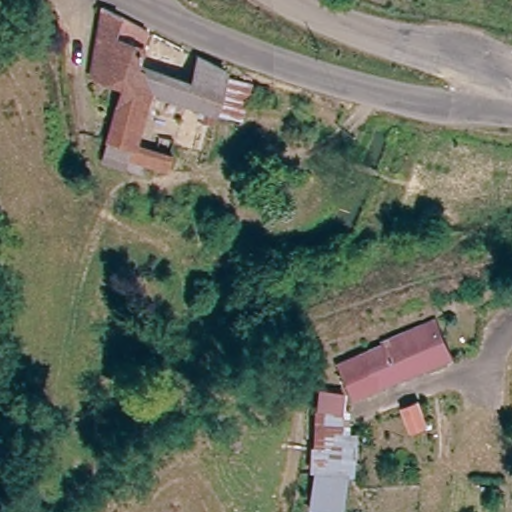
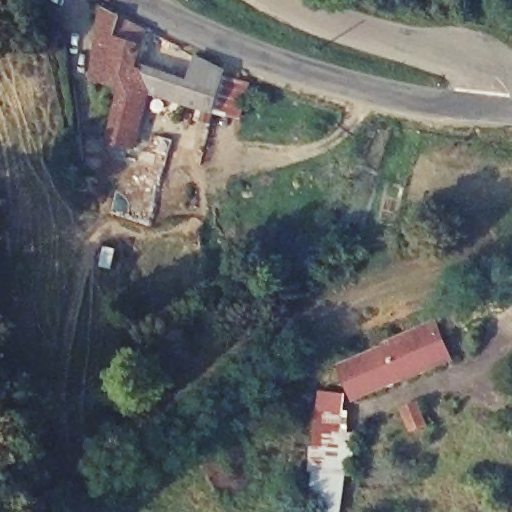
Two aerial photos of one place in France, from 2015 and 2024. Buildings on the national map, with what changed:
unchanged [(134,140),(116,134),(127,84),(98,72),(100,10),(118,17),(141,26),(139,42),(136,63),(193,83),(202,53),(232,65),(218,110),(150,87),(134,140)]
unchanged [(134,140),(173,153),(170,168),(130,155),(134,140)]
unchanged [(439,321),(455,359),(359,397),(346,363),(393,344),(392,340),(439,321)]
unchanged [(349,390),(346,433),(359,434),(356,473),(348,472),(346,510),(312,506),(317,471),(313,470),(317,443),(319,390),(349,390)]

